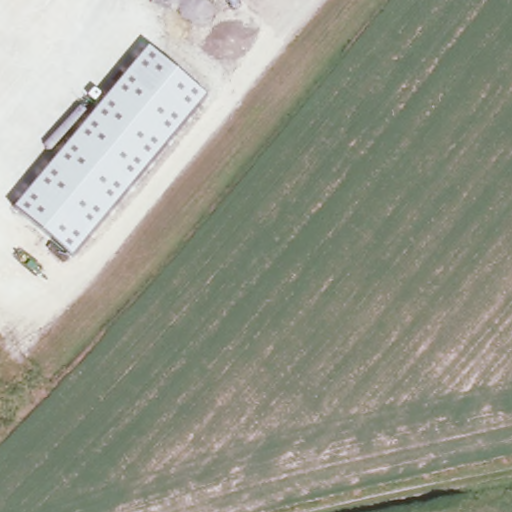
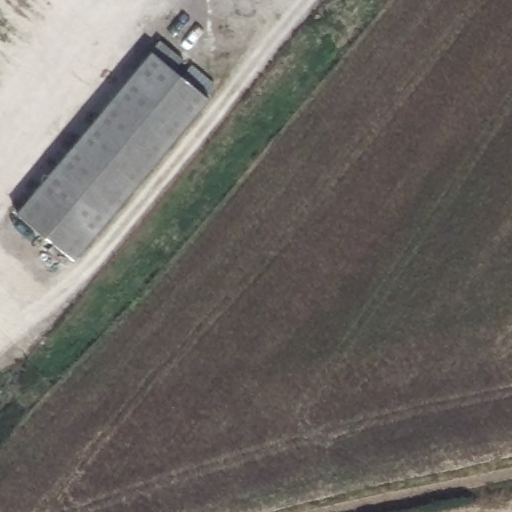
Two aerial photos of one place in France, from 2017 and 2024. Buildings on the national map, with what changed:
unchanged [(151,50),(209,98),(74,259),(17,212),(151,50)]

